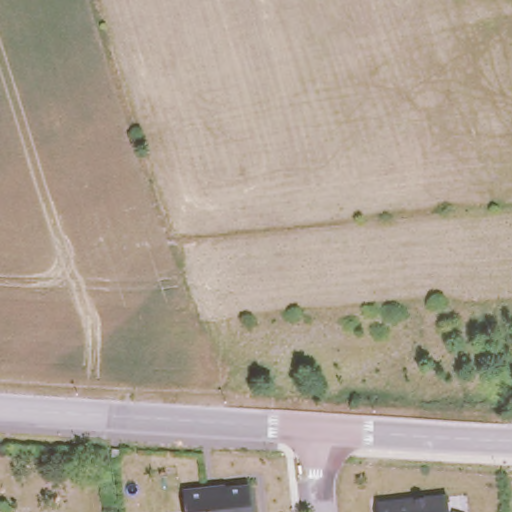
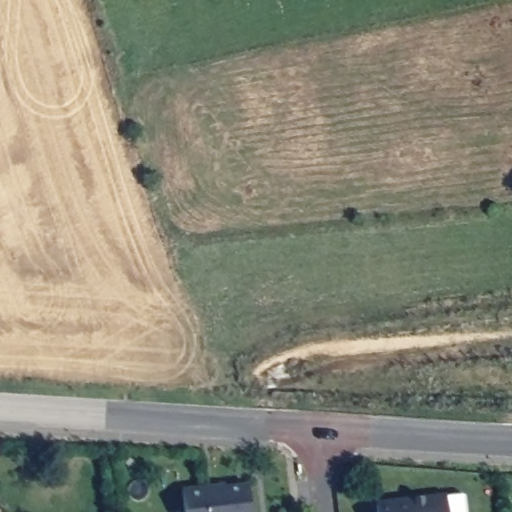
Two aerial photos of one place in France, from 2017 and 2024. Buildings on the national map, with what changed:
unchanged [(186,512),(184,490),(247,485),(251,512),(186,512)]
unchanged [(451,512),(378,512),(377,502),(450,493),(451,512)]
unchanged [(2,512),(0,512),(0,509),(2,509),(2,512)]

